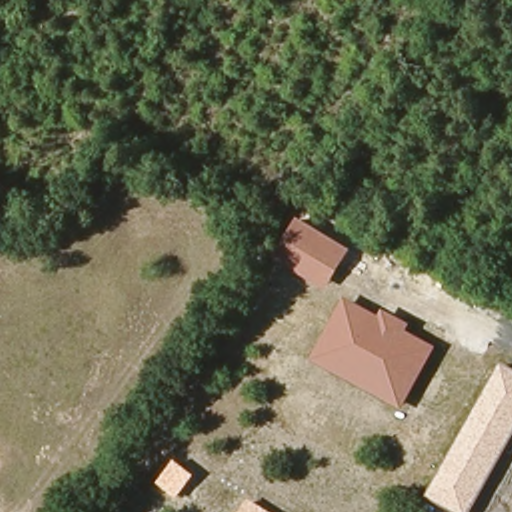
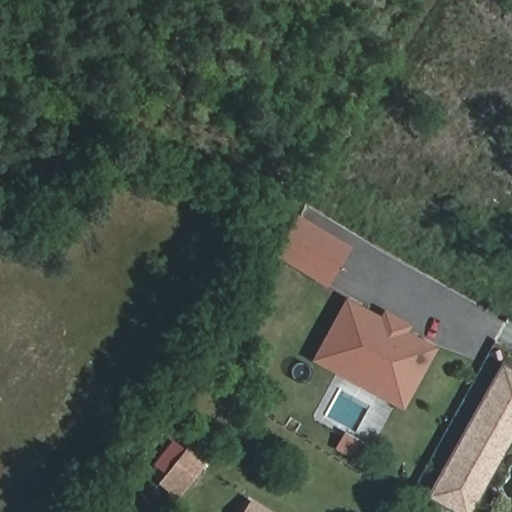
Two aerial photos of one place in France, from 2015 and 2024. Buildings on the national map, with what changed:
unchanged [(326,289),(271,256),(295,214),(351,247),(326,289)]
unchanged [(383,311),(411,325),(407,332),(437,348),(402,411),(310,361),(345,299),(380,317),(383,311)]
unchanged [(454,512),(427,496),(502,365),(512,370),(512,439),(471,512),(454,512)]
unchanged [(177,500),(157,483),(175,461),(196,477),(177,500)]
unchanged [(268,512),(243,512),(250,501),(268,512)]

